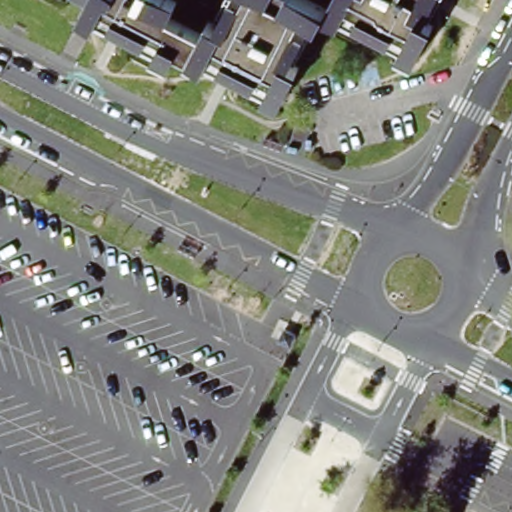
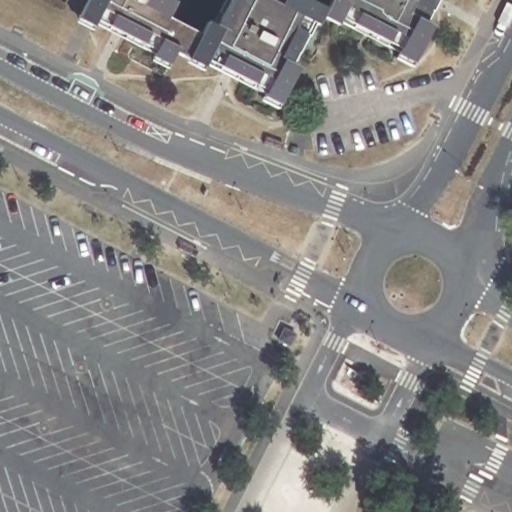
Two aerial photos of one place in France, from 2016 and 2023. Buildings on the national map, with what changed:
unchanged [(71,0),(91,0),(85,10),(70,2),(71,0)]
unchanged [(184,67),(172,61),(165,73),(150,65),(157,49),(145,43),(140,52),(125,44),(131,30),(113,21),(106,35),(94,29),(91,34),(77,28),(85,10),(91,0),(113,0),(114,0),(148,0),(175,13),(168,28),(197,42),(184,67)]
unchanged [(202,31),(212,35),(227,4),(238,10),(243,0),(282,0),(323,20),(320,26),(315,34),(297,25),(290,37),(302,43),(287,72),(294,76),(275,115),(259,106),(267,89),(255,83),(250,93),(234,85),(237,77),(220,68),(216,76),(204,70),(200,76),(184,67),(197,42),(202,31)]
unchanged [(333,0),(358,0),(420,31),(430,36),(411,72),(395,64),(404,47),(392,41),(386,51),(350,32),(355,22),(345,17),(336,34),(320,26),(323,20),(333,0)]
unchanged [(412,11),(426,18),(420,31),(358,0),(418,0),(412,11)]
unchanged [(443,5),(433,0),(445,0),(443,5)]

